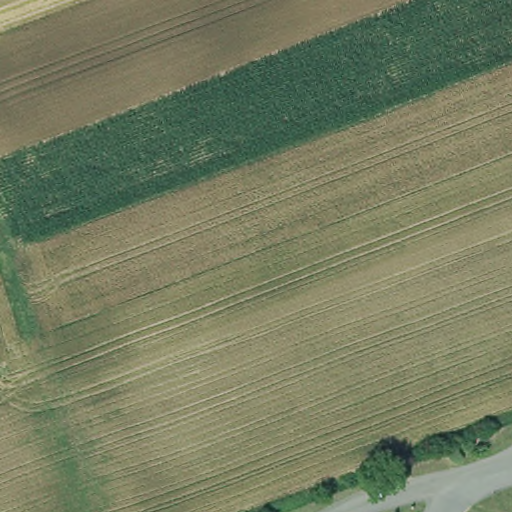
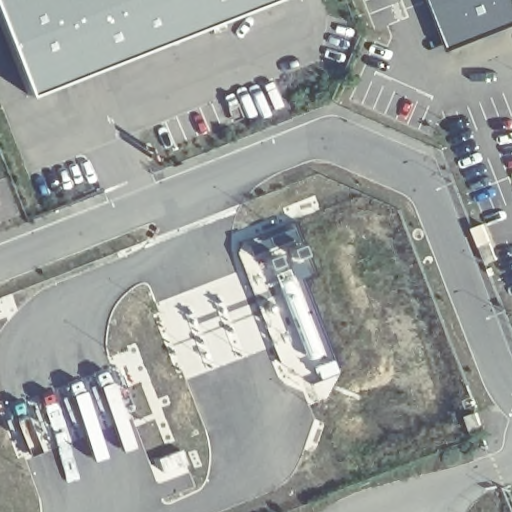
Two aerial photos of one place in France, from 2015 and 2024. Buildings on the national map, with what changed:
new [(0,3),(0,0),(273,0),(36,95),(0,3)]
new [(442,0),(512,0),(512,28),(460,49),(442,0)]

